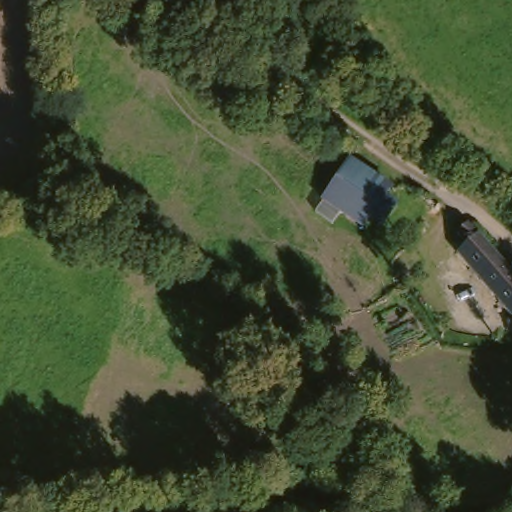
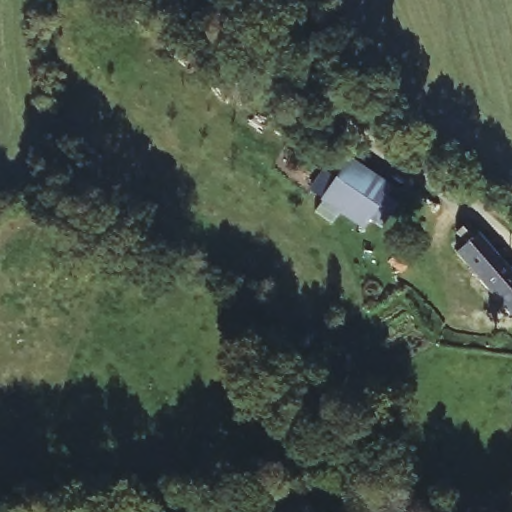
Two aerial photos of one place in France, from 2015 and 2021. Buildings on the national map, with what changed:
unchanged [(374,184),(389,195),(362,233),(321,203),(345,169),(348,165),(374,184)]
unchanged [(476,223),(512,263),(512,306),(459,247),(469,238),(459,227),(469,217),(476,223)]

